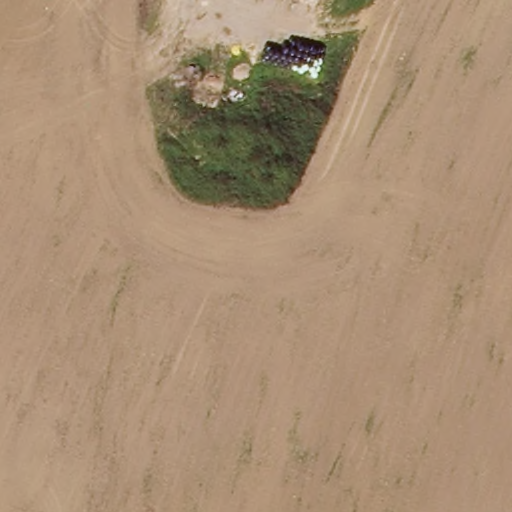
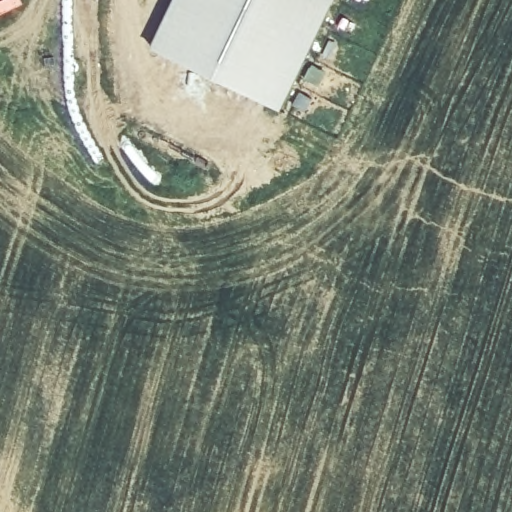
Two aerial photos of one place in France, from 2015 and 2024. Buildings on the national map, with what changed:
new [(280,112),(150,51),(174,0),(325,0),(330,2),(280,112)]
unchanged [(330,2),(325,0),(332,0),(330,2)]

